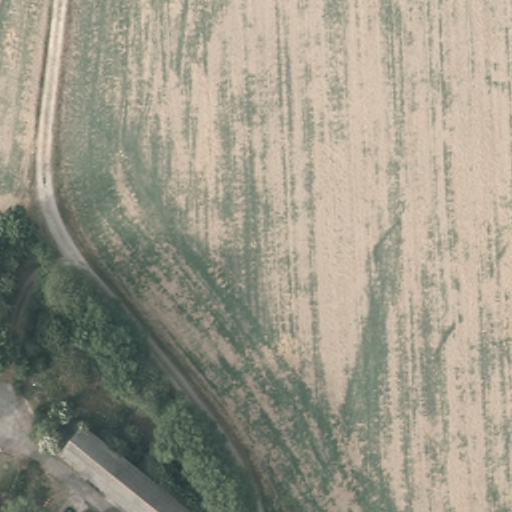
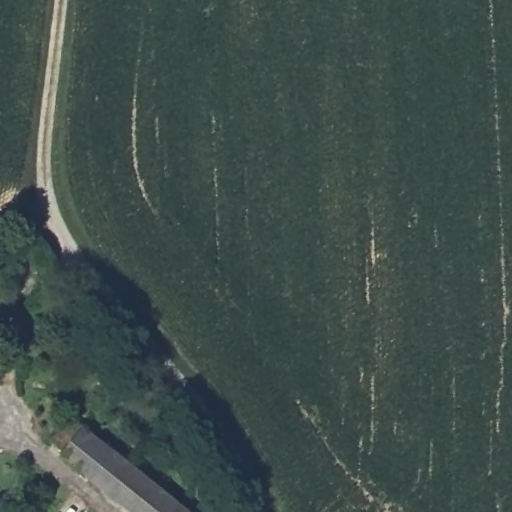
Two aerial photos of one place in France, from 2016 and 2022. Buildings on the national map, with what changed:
unchanged [(111,405),(216,492),(198,512),(192,512),(92,429),(111,405)]
unchanged [(192,512),(135,512),(70,457),(92,429),(192,512)]

